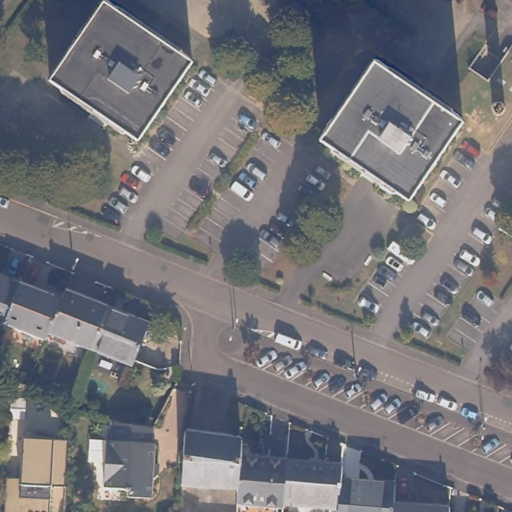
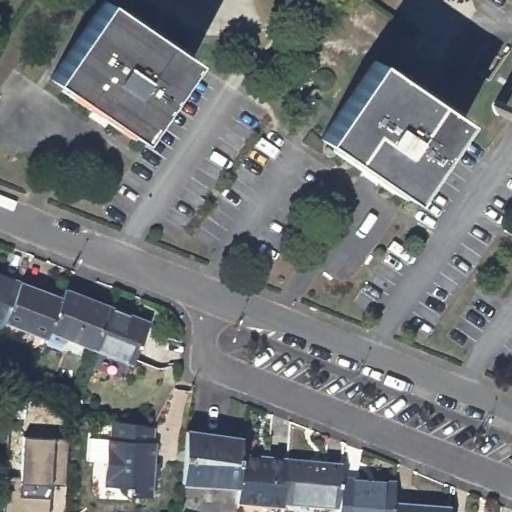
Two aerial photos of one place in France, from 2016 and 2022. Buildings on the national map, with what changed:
unchanged [(107,0),(191,58),(137,137),(48,75),(100,0),(107,0)]
unchanged [(373,58),(462,117),(407,196),(319,136),(373,58)]
unchanged [(7,313),(3,322),(0,321),(0,266),(22,275),(7,313)]
unchanged [(47,330),(7,313),(22,275),(62,292),(50,323),(47,330)]
unchanged [(91,340),(50,323),(62,292),(66,283),(107,300),(91,340)]
unchanged [(148,317),(132,357),(91,340),(107,300),(148,317)]
unchanged [(159,467),(154,472),(154,491),(131,491),(131,486),(127,483),(107,483),(107,434),(110,434),(110,414),(152,421),(152,436),(154,436),(154,456),(159,456),(159,467)]
unchanged [(237,480),(180,475),(183,428),(240,436),(239,451),(237,480)]
unchanged [(26,439),(55,440),(52,485),(51,512),(6,512),(8,478),(23,479),(26,439)]
unchanged [(278,501),(236,498),(237,480),(239,451),(283,455),(283,456),(278,501)]
unchanged [(334,512),(278,512),(278,501),(283,456),(338,460),(337,473),(334,512)]
unchanged [(388,512),(334,512),(337,473),(391,477),(389,496),(388,512)]
unchanged [(389,496),(445,501),(444,512),(388,512),(389,496)]

